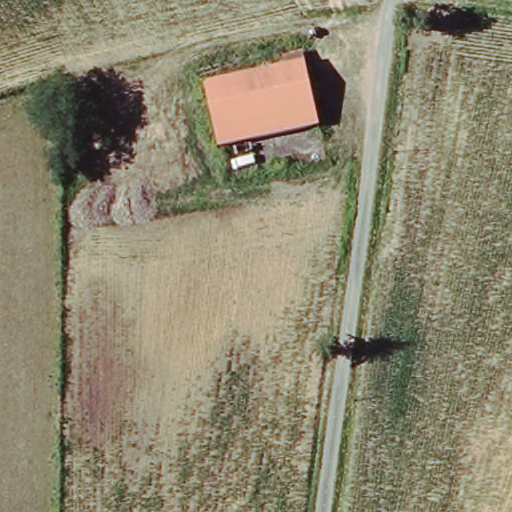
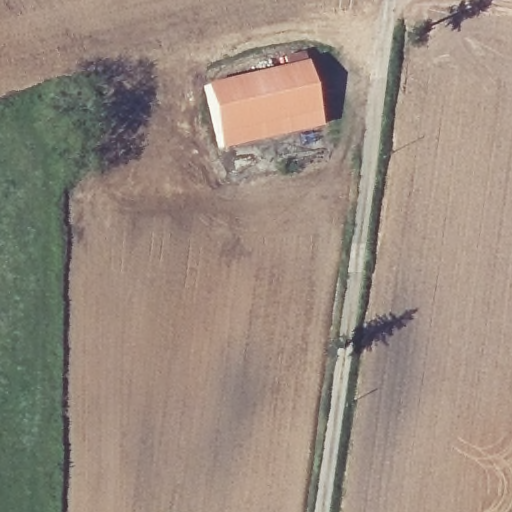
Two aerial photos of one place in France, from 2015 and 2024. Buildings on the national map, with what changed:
unchanged [(216,81),(317,61),(329,127),(229,148),(216,81)]

